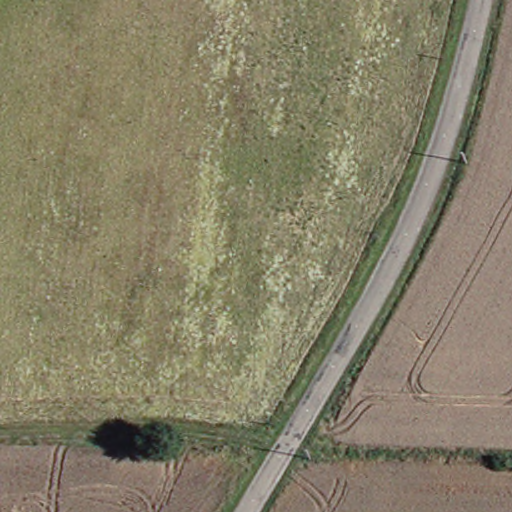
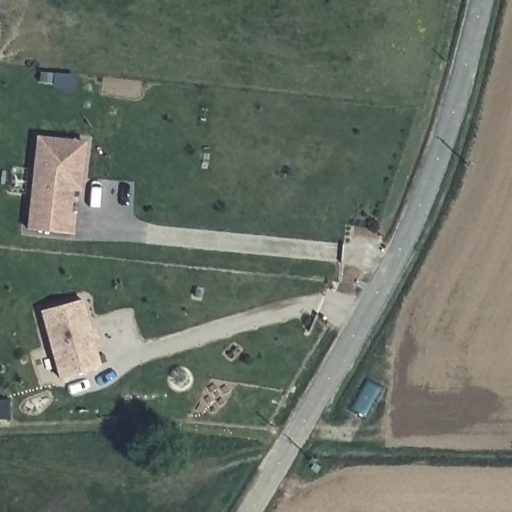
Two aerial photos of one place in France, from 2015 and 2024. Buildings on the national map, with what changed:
new [(83,138),(81,174),(80,185),(72,184),(71,209),(76,209),(74,229),(31,226),(37,135),(83,138)]
new [(82,297),(88,317),(91,326),(84,328),(90,349),(95,349),(100,365),(61,377),(41,308),(82,297)]

